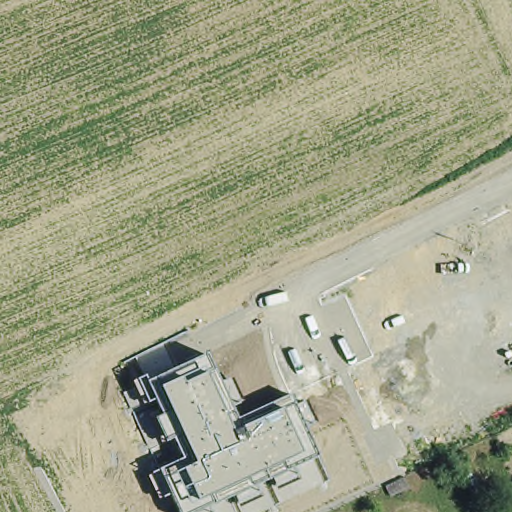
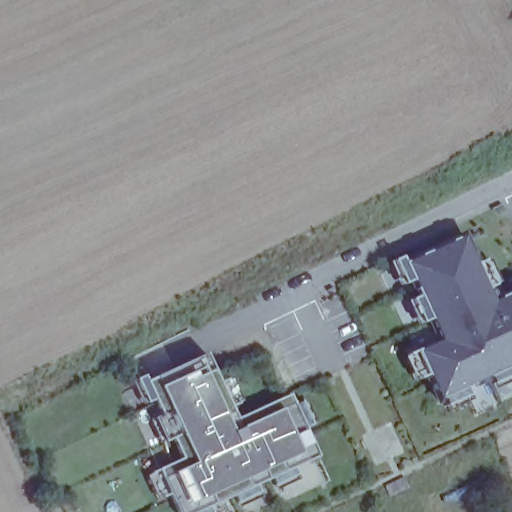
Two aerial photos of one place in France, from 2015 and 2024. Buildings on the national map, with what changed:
new [(428,320),(417,326),(407,303),(418,298),(410,281),(399,287),(388,265),(400,259),(403,265),(463,237),(493,302),(512,293),(512,368),(438,402),(426,376),(415,381),(404,359),(415,354),(415,353),(438,341),(428,320)]
unchanged [(170,494),(163,498),(152,475),(160,471),(183,460),(172,438),(166,442),(155,418),(163,414),(155,399),(148,403),(137,380),(147,376),(150,380),(206,355),(219,382),(232,377),(242,402),(232,407),(237,418),(290,395),(295,406),(306,401),(317,423),(305,428),(318,456),(294,467),(300,479),(277,490),(272,478),(257,485),(262,497),(241,507),(237,495),(208,507),(211,512),(179,512),(170,494)]

